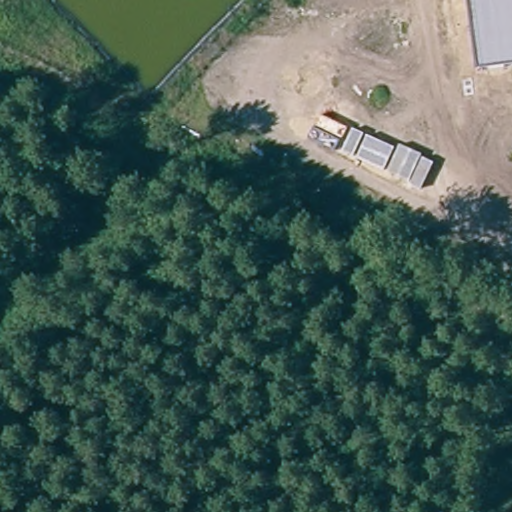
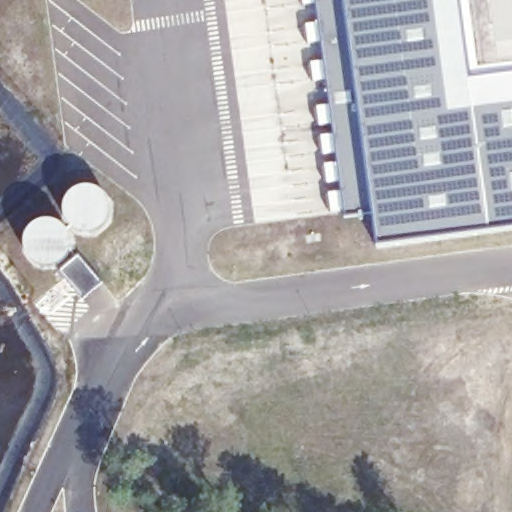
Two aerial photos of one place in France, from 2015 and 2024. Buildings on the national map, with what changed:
new [(512,67),(512,230),(377,248),(372,215),(345,217),(316,0),(468,0),(477,71),(512,67)]
unchanged [(468,0),(512,0),(512,67),(477,71),(468,0)]
new [(59,270),(78,254),(101,282),(83,298),(59,270)]

